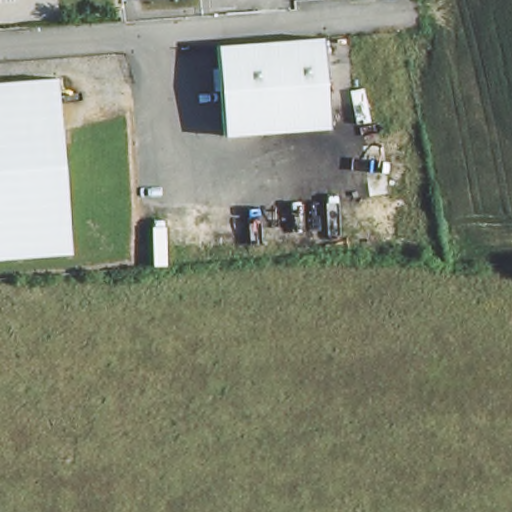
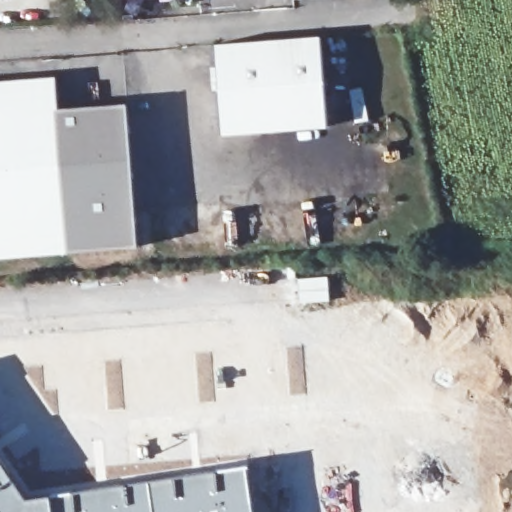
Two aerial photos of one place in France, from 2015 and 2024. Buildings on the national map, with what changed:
unchanged [(316,117),(210,127),(202,37),(310,29),(316,117)]
unchanged [(55,77),(70,250),(0,257),(0,82),(55,77)]
new [(136,247),(70,250),(58,110),(127,105),(136,247)]
new [(27,496),(50,492),(53,512),(0,512),(0,454),(27,496)]
new [(123,477),(216,465),(248,462),(256,512),(53,512),(50,492),(123,477)]

